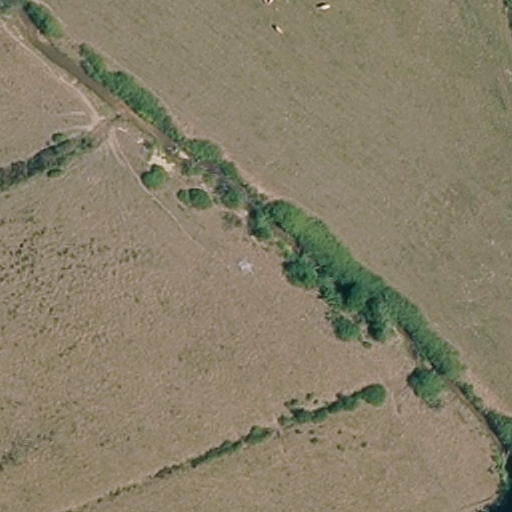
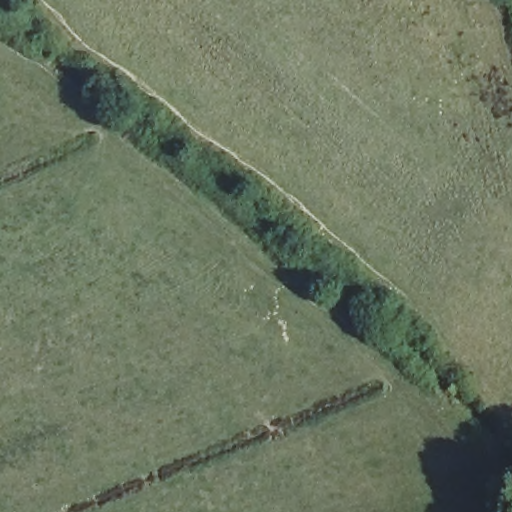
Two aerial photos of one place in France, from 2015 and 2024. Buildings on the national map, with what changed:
[]

